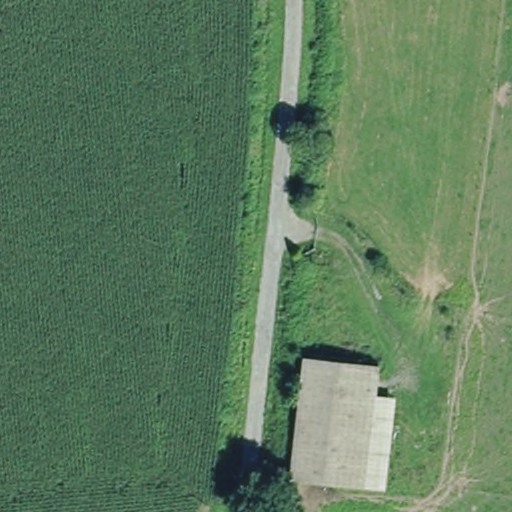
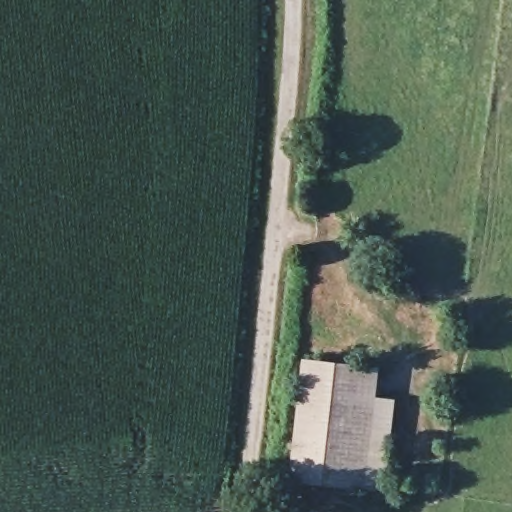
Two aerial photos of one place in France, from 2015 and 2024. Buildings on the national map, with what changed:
unchanged [(287,482),(300,359),(377,368),(362,490),(287,482)]

